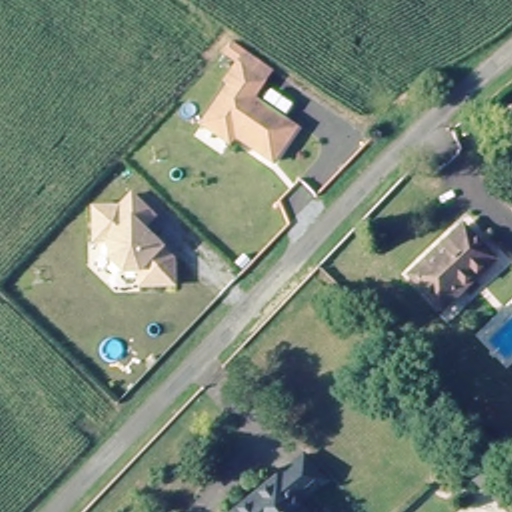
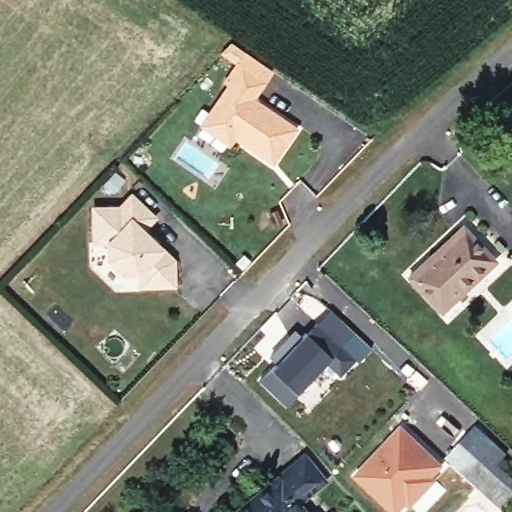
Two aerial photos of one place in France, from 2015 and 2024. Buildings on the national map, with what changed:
unchanged [(272,164),(234,139),(228,146),(200,127),(227,85),(223,82),(235,63),(218,51),(229,40),(271,68),(262,81),(251,98),(295,129),(272,164)]
unchanged [(512,97),(512,132),(495,110),(512,97)]
unchanged [(171,264),(172,289),(138,290),(137,276),(121,277),(106,263),(105,247),(92,247),(90,214),(116,212),(128,200),(151,221),(139,235),(171,264)]
unchanged [(422,264),(426,268),(466,232),(494,263),(441,313),(409,276),(422,264)]
unchanged [(247,265),(240,259),(246,252),(253,259),(247,265)]
new [(271,358),(284,345),(290,351),(318,325),(341,348),(355,361),(340,377),(328,365),(285,408),(259,383),(277,365),(271,358)]
new [(434,477),(437,480),(411,508),(408,505),(400,512),(392,512),(353,475),(402,423),(435,455),(446,465),(434,477)]
unchanged [(492,505),(467,483),(435,455),(436,455),(456,432),(462,426),(494,455),(487,461),(486,463),(510,485),(492,505)]
unchanged [(327,480),(301,503),(308,512),(238,512),(304,455),(327,480)]

